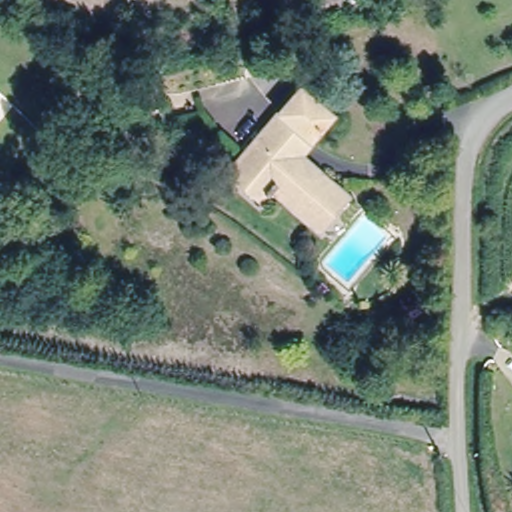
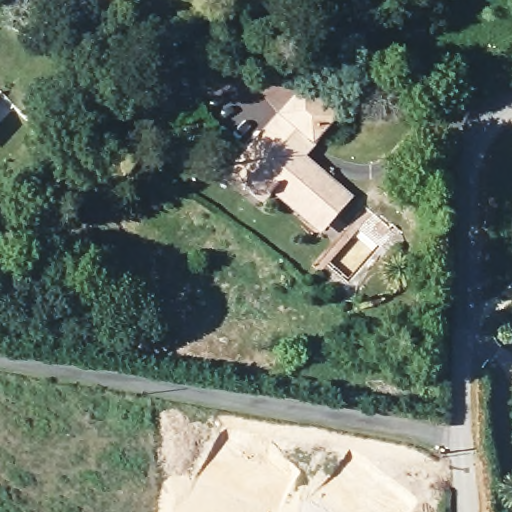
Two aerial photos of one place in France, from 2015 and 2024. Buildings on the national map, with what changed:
unchanged [(76,69),(92,53),(108,69),(93,85),(76,69)]
unchanged [(310,136),(281,108),(304,84),(332,113),(310,136)]
unchanged [(292,154),(263,126),(281,108),(310,136),(298,149),(292,154)]
unchanged [(312,223),(275,188),(267,195),(261,201),(246,185),(232,172),(225,165),(242,148),(263,126),(292,154),(298,149),(348,198),(333,213),(318,228),(312,223)]

